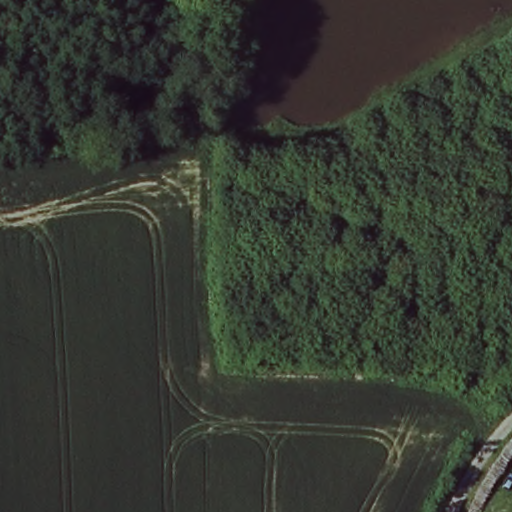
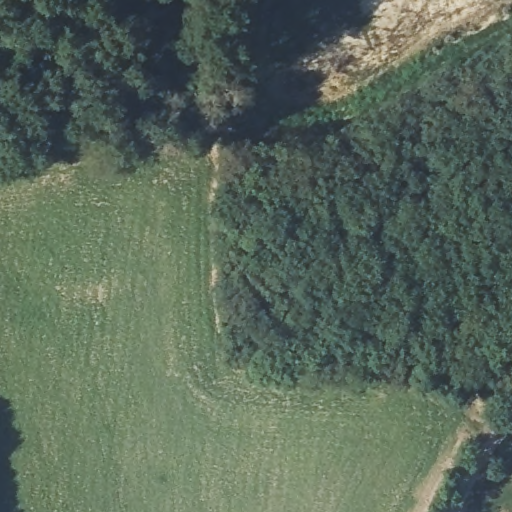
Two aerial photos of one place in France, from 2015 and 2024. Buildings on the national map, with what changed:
[]

